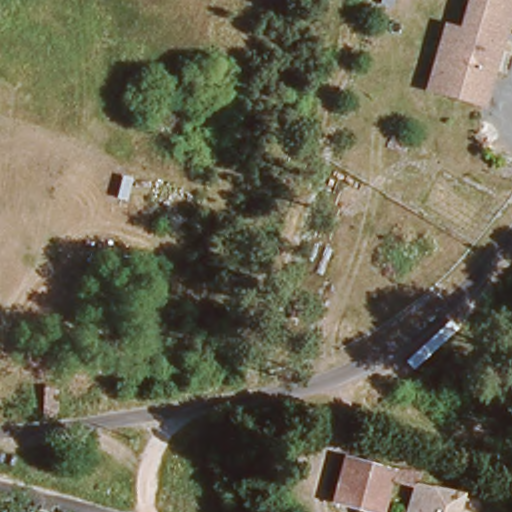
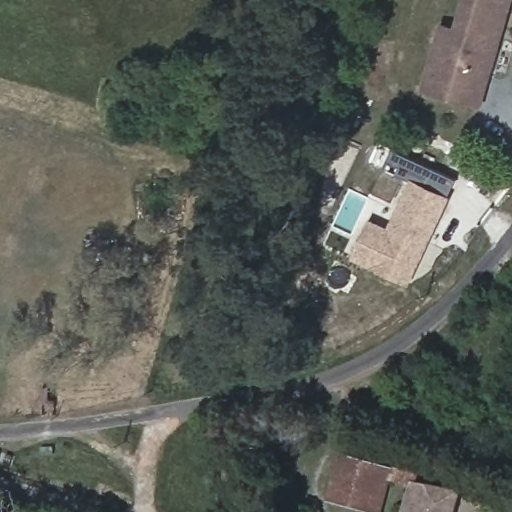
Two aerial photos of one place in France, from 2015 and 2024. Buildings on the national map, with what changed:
unchanged [(453,25),(461,0),(512,0),(512,1),(481,106),(421,89),(440,20),(453,25)]
new [(355,259),(372,220),(392,228),(413,178),(387,166),(394,150),(460,181),(411,286),(355,259)]
unchanged [(35,385),(50,386),(50,407),(35,409),(35,385)]
unchanged [(399,468),(418,470),(417,481),(457,490),(451,512),(403,512),(410,487),(390,480),(379,512),(330,497),(342,455),(370,462),(399,468)]

